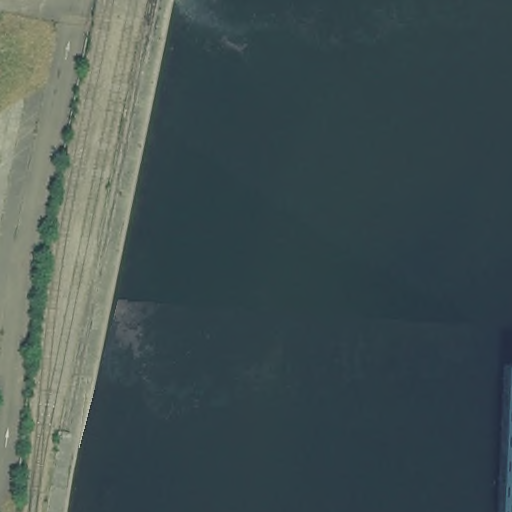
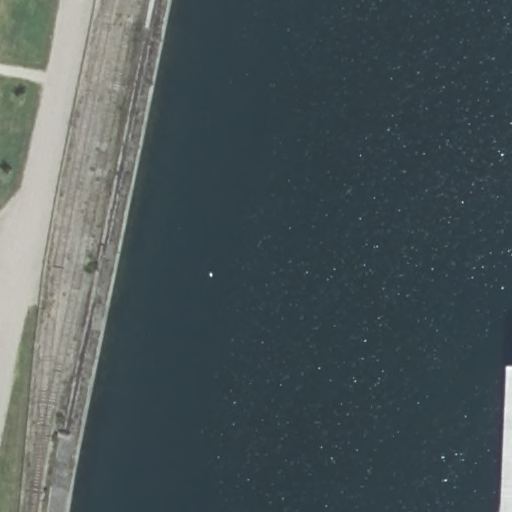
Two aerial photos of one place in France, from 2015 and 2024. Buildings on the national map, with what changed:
unchanged [(512,371),(512,512),(496,512),(501,371),(512,371)]

